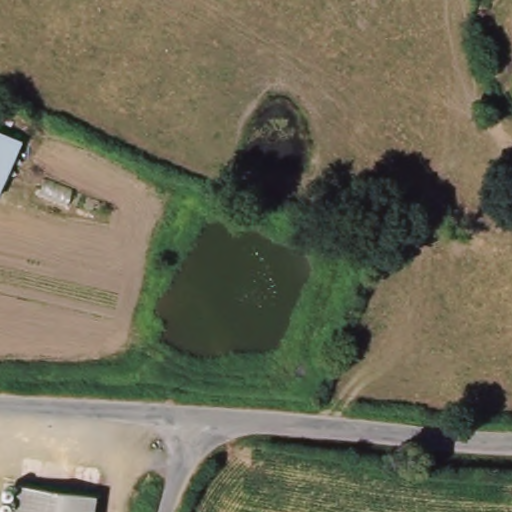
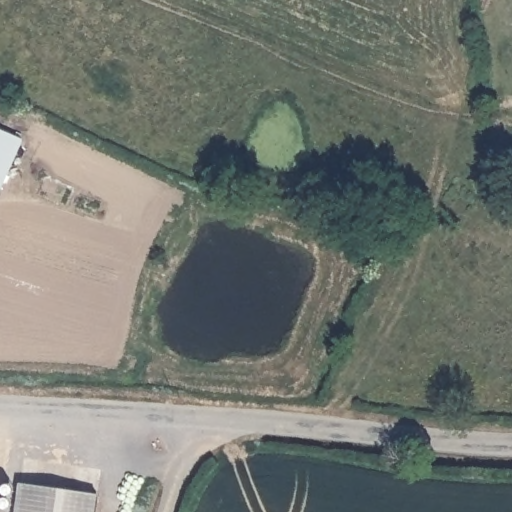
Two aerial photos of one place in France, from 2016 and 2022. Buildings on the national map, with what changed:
unchanged [(25,140),(2,197),(0,197),(0,129),(25,140)]
unchanged [(31,458),(109,472),(102,512),(23,512),(31,458)]

